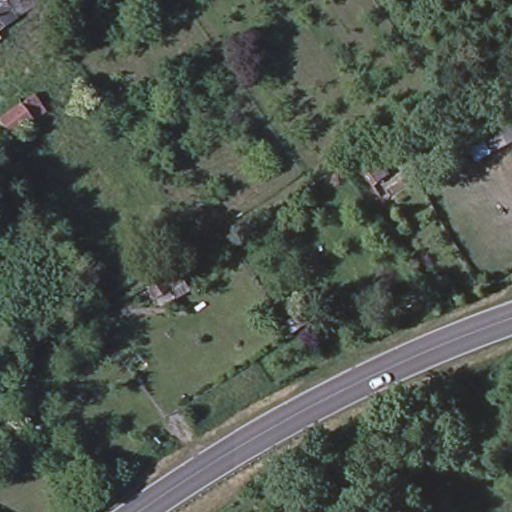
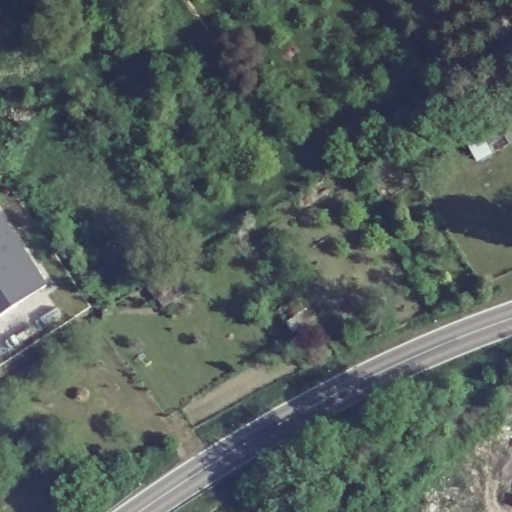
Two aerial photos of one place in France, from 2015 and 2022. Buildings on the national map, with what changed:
unchanged [(0,25),(0,0),(13,0),(20,10),(0,25)]
unchanged [(36,96),(47,113),(13,136),(2,120),(36,96)]
new [(0,315),(0,214),(47,285),(0,315)]
unchanged [(164,279),(170,290),(157,298),(150,287),(164,279)]
unchanged [(305,501),(312,509),(308,512),(289,512),(305,501)]

